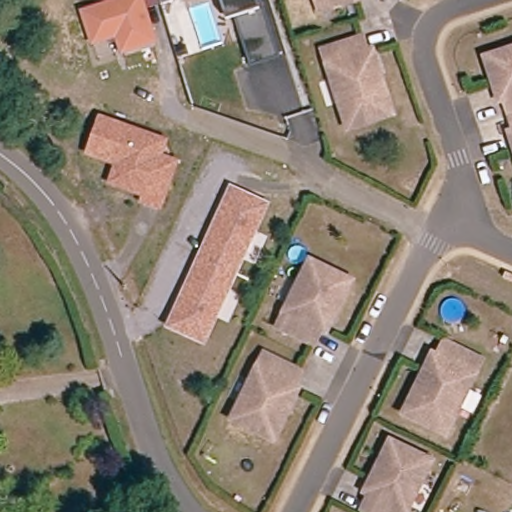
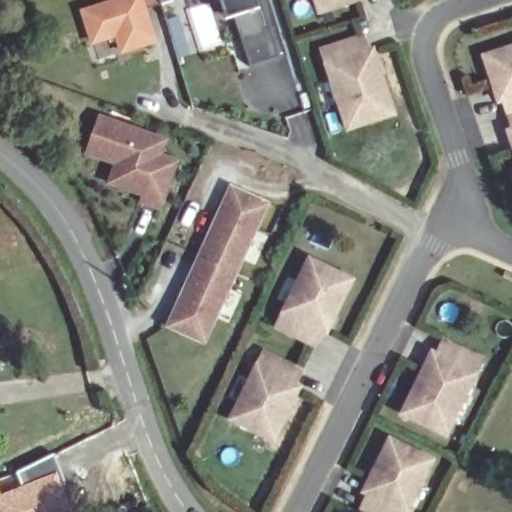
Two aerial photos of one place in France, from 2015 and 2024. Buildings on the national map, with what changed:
unchanged [(109,0),(173,0),(147,10),(157,46),(120,56),(115,41),(90,49),(80,9),(109,0)]
unchanged [(265,6),(281,58),(250,68),(233,16),(225,19),(219,0),(255,0),(258,9),(265,6)]
unchanged [(321,14),(316,0),(360,0),(361,1),(321,14)]
unchanged [(320,51),(360,38),(367,51),(371,50),(392,118),(342,137),(320,51)]
unchanged [(512,49),(512,136),(506,118),(493,79),(488,80),(481,60),(512,49)]
unchanged [(169,138),(164,155),(179,160),(162,212),(138,203),(140,196),(106,184),(112,165),(84,156),(98,114),(169,138)]
unchanged [(268,205),(257,230),(229,288),(204,341),(171,325),(236,189),(268,205)]
unchanged [(307,265),(350,286),(332,320),(328,318),(312,351),(274,332),(307,265)]
unchanged [(443,440),(402,418),(421,381),(425,384),(444,346),(482,366),(443,440)]
unchanged [(298,376),(282,409),(287,411),(270,445),(227,424),(261,357),(298,376)]
unchanged [(407,512),(359,512),(375,481),(371,479),(387,445),(430,467),(407,512)]
new [(75,512),(0,512),(0,477),(54,455),(75,512)]

